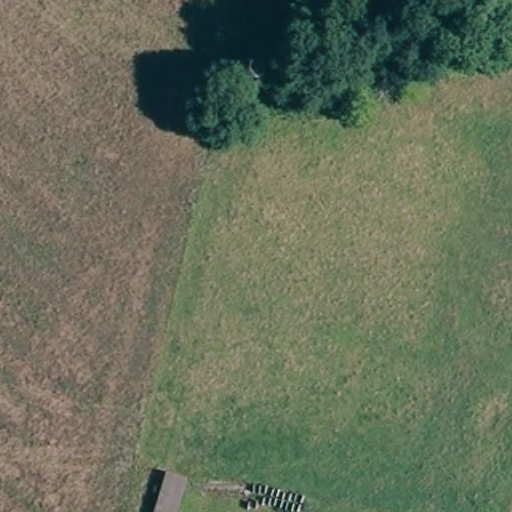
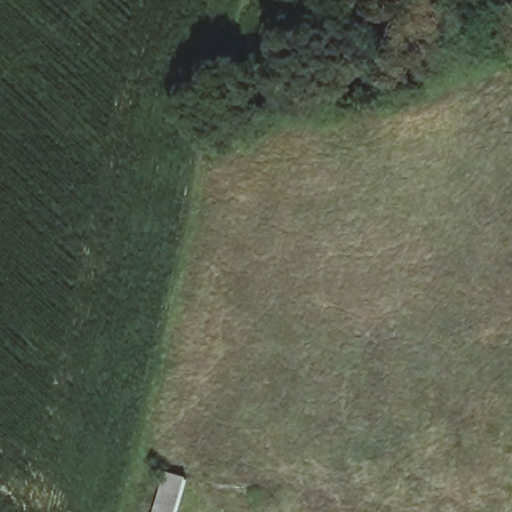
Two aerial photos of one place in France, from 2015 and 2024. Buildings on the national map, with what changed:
unchanged [(182,485),(174,512),(152,512),(161,479),(182,485)]

